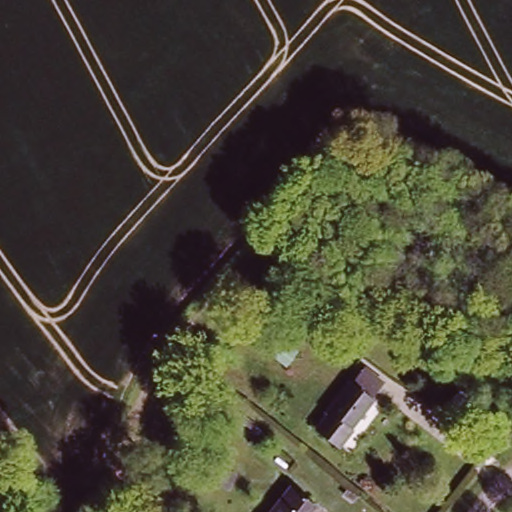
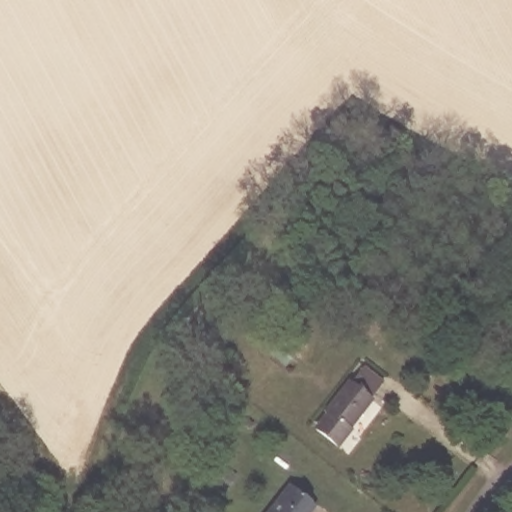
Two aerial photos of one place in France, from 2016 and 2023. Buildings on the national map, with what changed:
unchanged [(312,283),(318,276),(330,286),(325,293),(312,283)]
unchanged [(351,383),(362,368),(382,384),(370,399),(371,400),(349,429),(350,430),(337,447),(315,430),(328,414),(326,413),(350,382),(351,383)]
unchanged [(445,399),(456,386),(469,397),(458,410),(445,399)]
unchanged [(225,408),(228,404),(248,420),(245,423),(225,408)]
unchanged [(220,483),(210,476),(200,469),(209,457),(218,463),(230,471),(220,483)]
unchanged [(315,505),(309,512),(269,512),(290,485),(315,505)]

